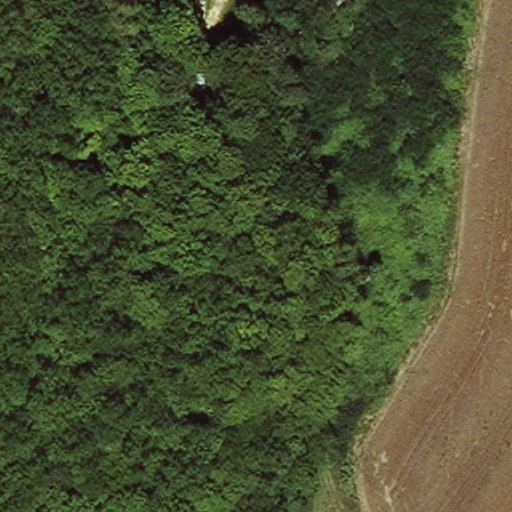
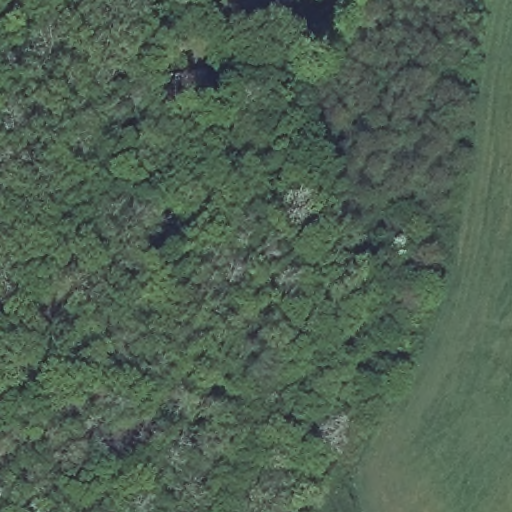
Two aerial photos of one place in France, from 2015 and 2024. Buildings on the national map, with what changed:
unchanged [(155,66),(163,36),(177,40),(169,68),(155,66)]
unchanged [(191,74),(176,71),(186,42),(199,46),(191,74)]

